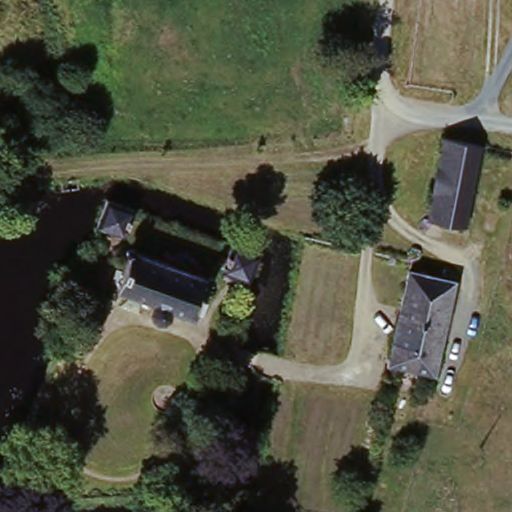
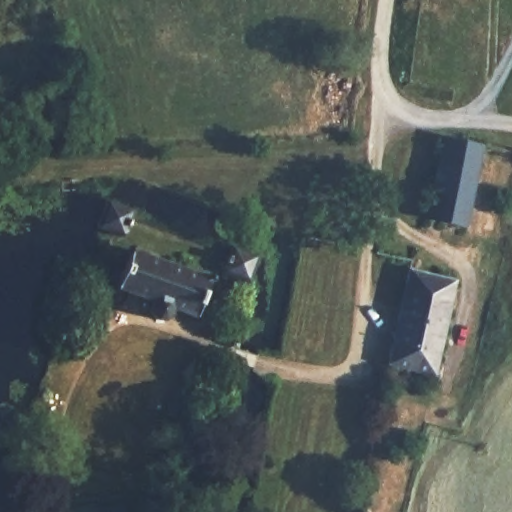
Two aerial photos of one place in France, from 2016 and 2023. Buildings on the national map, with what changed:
unchanged [(480,149),(474,176),(463,230),(429,223),(444,141),(480,149)]
unchanged [(110,203),(138,212),(128,238),(101,229),(110,203)]
unchanged [(225,270),(234,244),(262,253),(253,280),(247,278),(225,270)]
unchanged [(212,281),(199,317),(177,309),(173,317),(167,320),(160,320),(157,318),(154,315),(153,313),(157,302),(124,290),(120,301),(110,297),(115,284),(121,286),(134,252),(212,281)]
unchanged [(459,280),(438,376),(391,366),(399,330),(407,295),(412,269),(459,280)]

